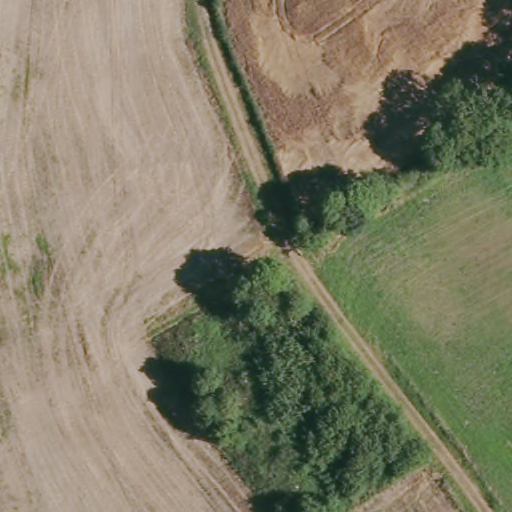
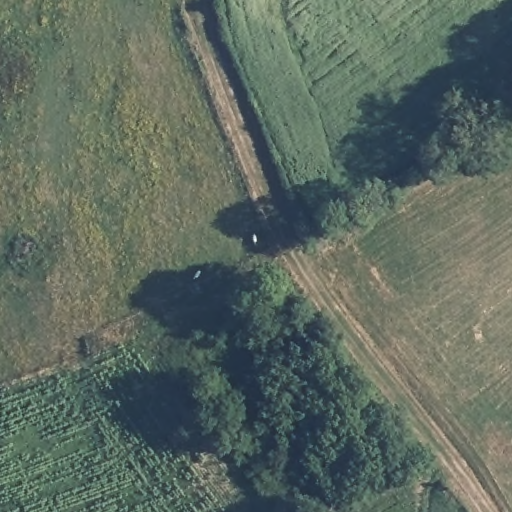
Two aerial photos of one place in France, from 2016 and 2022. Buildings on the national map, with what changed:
[]

